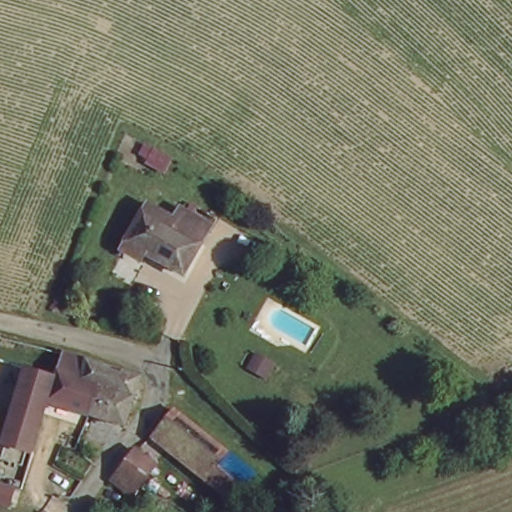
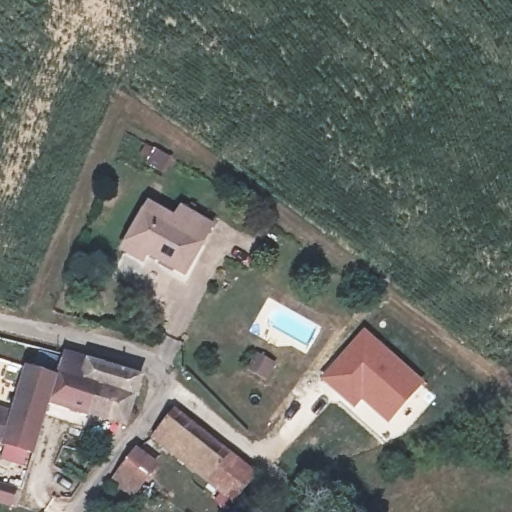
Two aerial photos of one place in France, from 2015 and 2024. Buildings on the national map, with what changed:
unchanged [(215,234),(195,277),(128,250),(148,204),(215,232),(215,234)]
new [(363,327),(423,381),(387,423),(361,400),(353,409),(317,377),(363,327)]
unchanged [(12,390),(20,392),(30,365),(60,376),(67,354),(92,362),(83,388),(95,392),(86,416),(50,404),(32,454),(0,445),(0,412),(5,413),(12,390)]
unchanged [(95,392),(83,388),(92,362),(142,377),(121,428),(86,416),(95,392)]
unchanged [(257,476),(233,507),(152,444),(175,413),(257,476)]
unchanged [(155,467),(135,498),(114,484),(132,453),(155,467)]
demolished [(23,478),(45,485),(36,511),(14,504),(23,478)]

